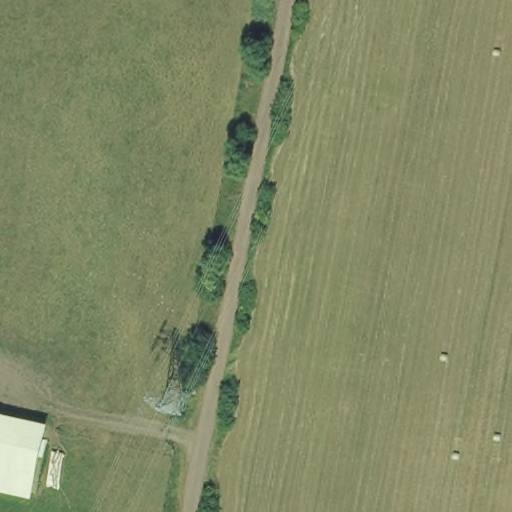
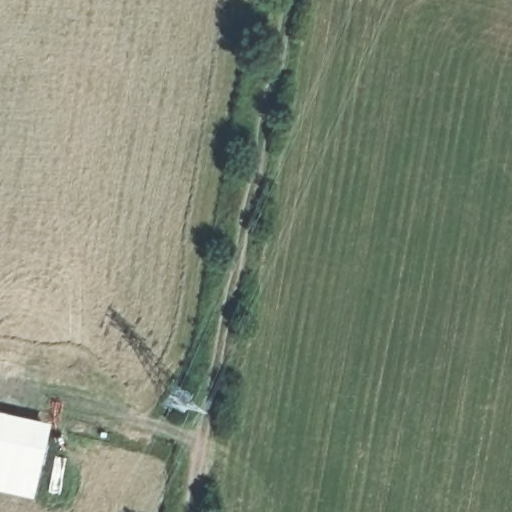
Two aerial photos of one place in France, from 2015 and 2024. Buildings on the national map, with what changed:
unchanged [(29,497),(0,492),(0,411),(48,423),(29,497)]

